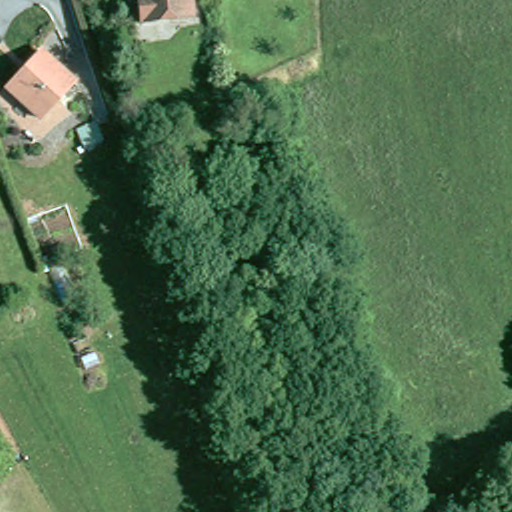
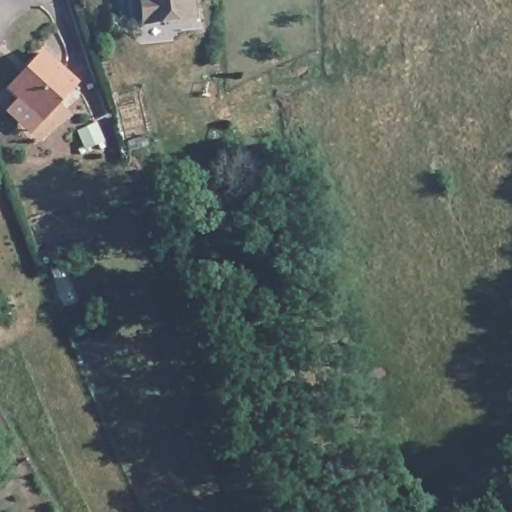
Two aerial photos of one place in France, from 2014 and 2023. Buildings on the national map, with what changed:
unchanged [(138,26),(138,0),(192,0),(193,20),(193,25),(168,25),(154,26),(138,26)]
unchanged [(14,96),(10,93),(32,68),(43,55),(65,73),(76,83),(70,90),(44,121),(14,96)]

